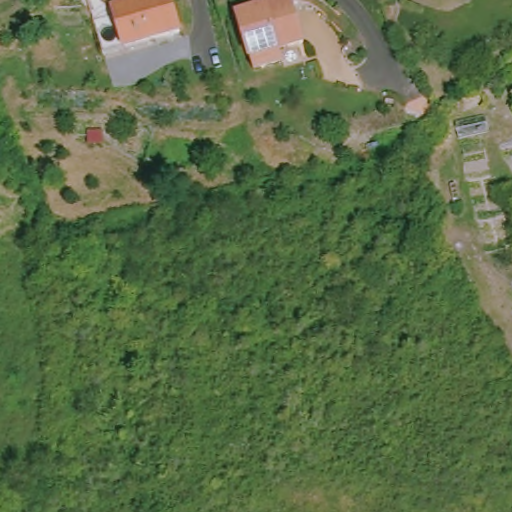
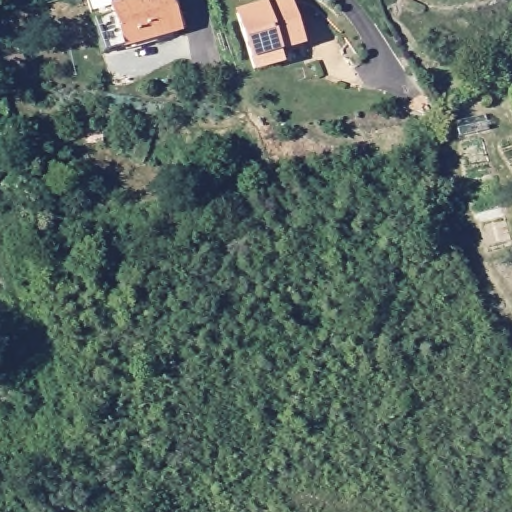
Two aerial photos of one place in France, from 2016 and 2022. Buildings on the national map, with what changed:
unchanged [(165,0),(175,29),(123,47),(108,7),(127,0),(165,0)]
unchanged [(284,0),(300,39),(279,48),(284,60),(254,72),(231,20),(277,0),(284,0)]

